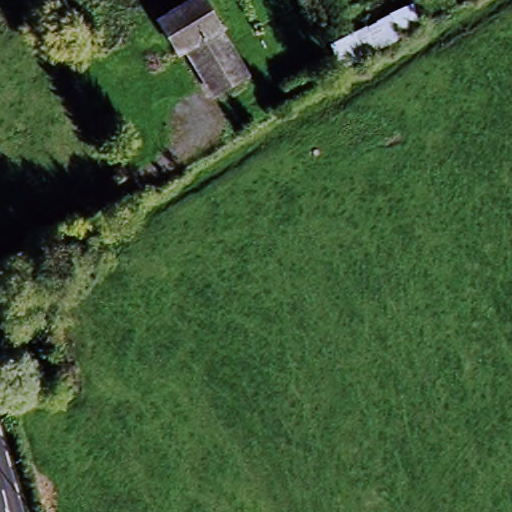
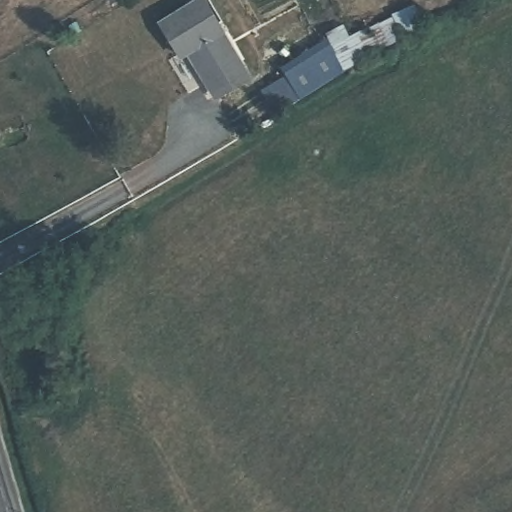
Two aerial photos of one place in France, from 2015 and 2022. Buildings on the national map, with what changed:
unchanged [(157,18),(188,0),(203,0),(242,71),(208,90),(182,41),(173,46),(157,18)]
unchanged [(415,6),(424,25),(342,71),(326,47),(415,6)]
new [(326,47),(342,71),(276,115),(260,88),(285,72),(280,65),(325,38),(322,34),(340,23),(348,36),(326,47)]

